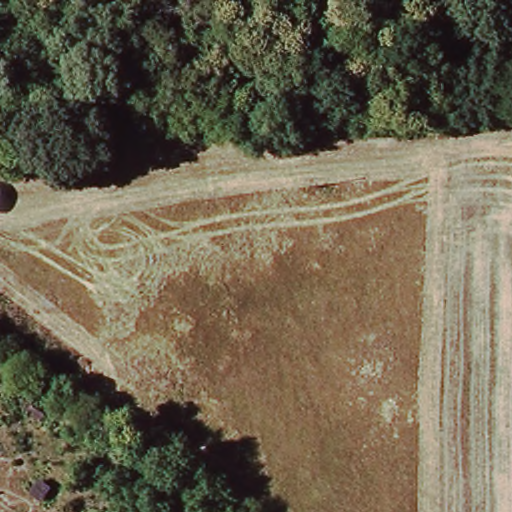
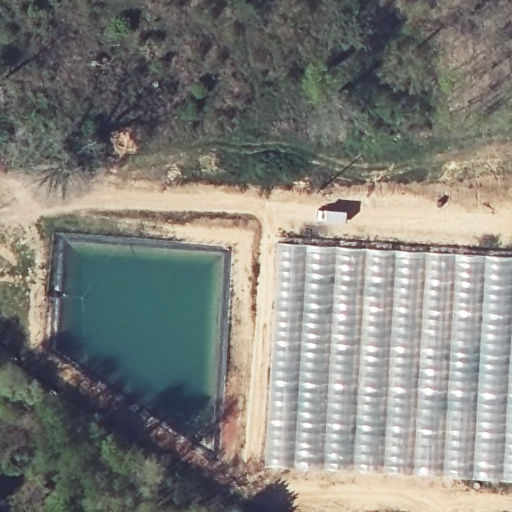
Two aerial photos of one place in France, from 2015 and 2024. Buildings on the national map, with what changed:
new [(512,256),(512,482),(456,479),(363,472),(311,470),(263,466),(274,241),(512,256)]

